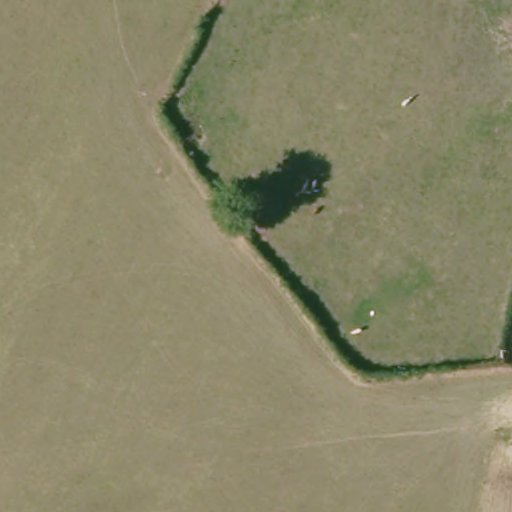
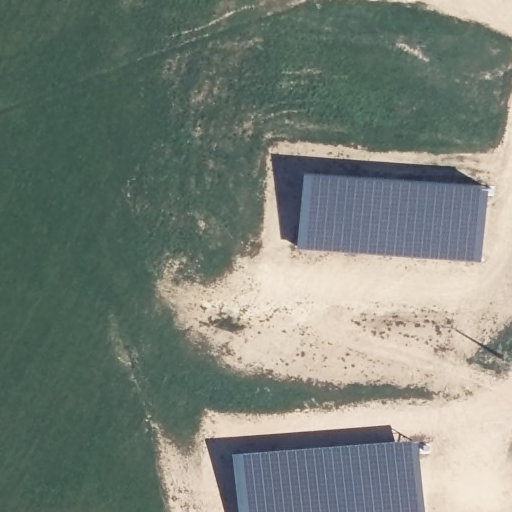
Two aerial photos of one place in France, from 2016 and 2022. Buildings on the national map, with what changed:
new [(308,170),(492,192),(482,267),(299,247),(308,170)]
new [(422,442),(425,512),(240,512),(238,450),(422,442)]

